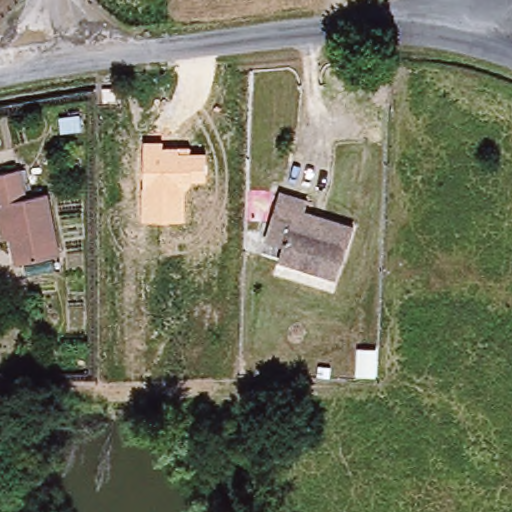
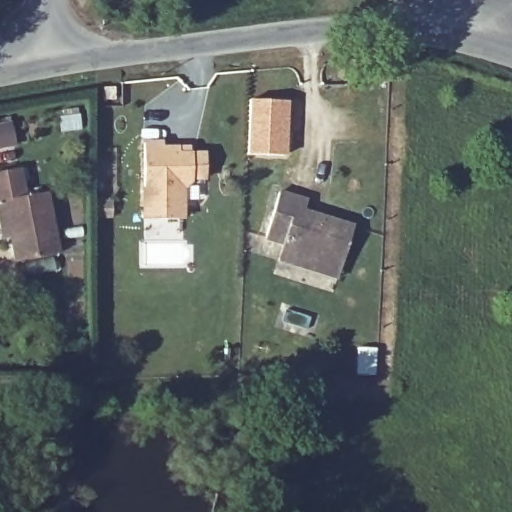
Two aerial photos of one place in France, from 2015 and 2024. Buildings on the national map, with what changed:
unchanged [(112,104),(102,103),(103,93),(112,94),(112,104)]
new [(248,99),(289,100),(286,155),(246,154),(248,99)]
unchanged [(80,132),(63,134),(61,121),(77,118),(80,132)]
unchanged [(163,140),(163,147),(191,146),(190,154),(206,152),(207,180),(193,181),(185,191),(184,219),(144,219),(144,141),(163,140)]
unchanged [(0,223),(0,172),(23,168),(29,196),(49,193),(59,253),(14,260),(10,236),(2,238),(0,223)]
unchanged [(262,238),(279,193),(306,202),(303,211),(352,230),(340,266),(281,245),(262,238)]
unchanged [(334,283),(275,262),(281,245),(340,266),(334,283)]

